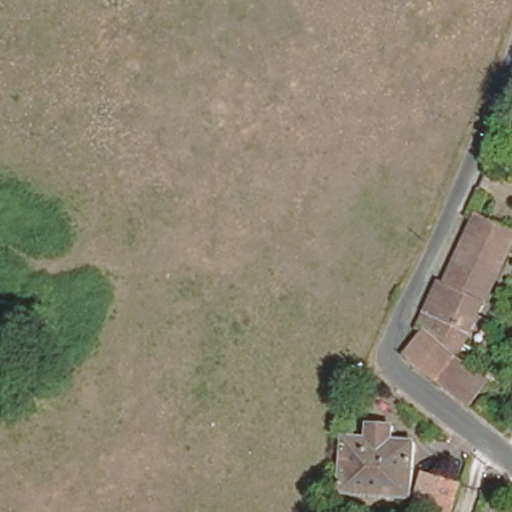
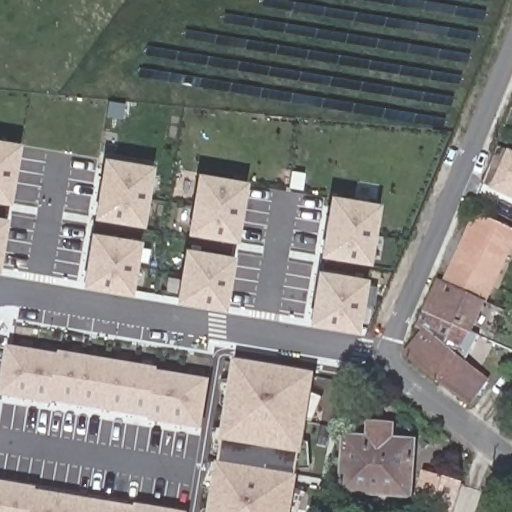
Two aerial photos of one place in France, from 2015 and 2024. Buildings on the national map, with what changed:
new [(20,139),(10,202),(0,200),(0,136),(20,139)]
new [(507,150),(512,152),(512,199),(490,189),(507,150)]
new [(102,154),(153,161),(142,225),(92,216),(102,154)]
new [(195,169),(246,177),(236,240),(185,231),(195,169)]
new [(329,191),(380,200),(370,262),(318,254),(329,191)]
new [(6,216),(0,256),(0,214),(6,216)]
unchanged [(512,239),(469,332),(424,310),(438,281),(444,284),(474,216),(512,233),(512,239)]
new [(90,229),(140,237),(131,293),(80,285),(90,229)]
new [(235,253),(225,309),(174,300),(184,244),(235,253)]
new [(367,275),(357,331),(306,323),(316,267),(367,275)]
unchanged [(421,330),(477,378),(457,403),(399,356),(421,330)]
new [(205,433),(151,423),(151,420),(54,404),(54,408),(0,399),(9,347),(61,356),(61,353),(160,370),(160,372),(213,381),(205,433)]
new [(317,374),(305,456),(300,456),(297,476),(300,476),(294,512),(210,512),(218,464),(221,464),(225,443),(222,442),(236,360),(317,374)]
unchanged [(393,431),(392,448),(410,448),(407,496),(341,493),(344,446),(363,446),(365,430),(393,431)]
new [(40,489),(39,492),(136,509),(137,506),(178,512),(0,512),(0,483),(40,489)]
unchanged [(437,489),(457,495),(452,512),(431,512),(437,489)]

